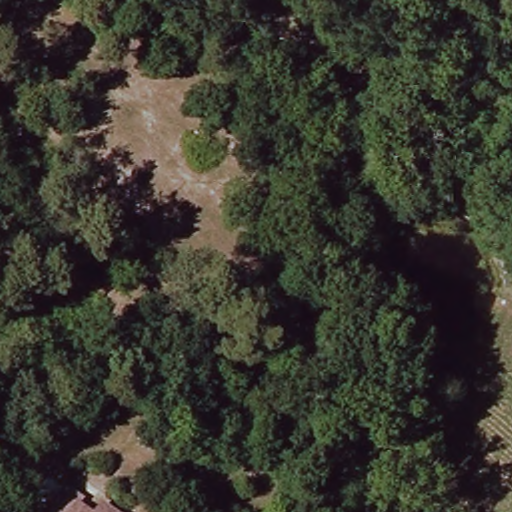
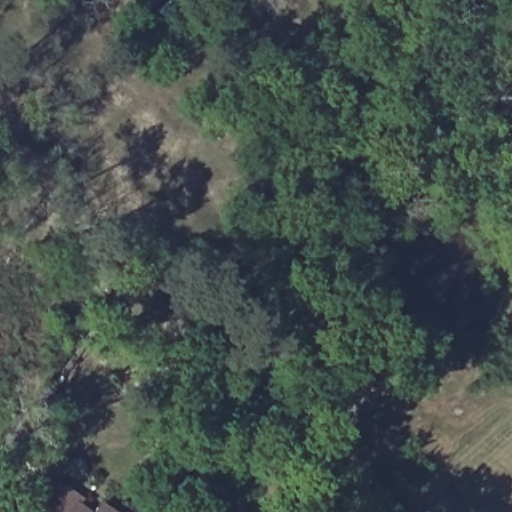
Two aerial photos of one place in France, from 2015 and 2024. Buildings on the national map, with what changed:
unchanged [(83,499),(97,510),(96,512),(73,512),(83,499)]

